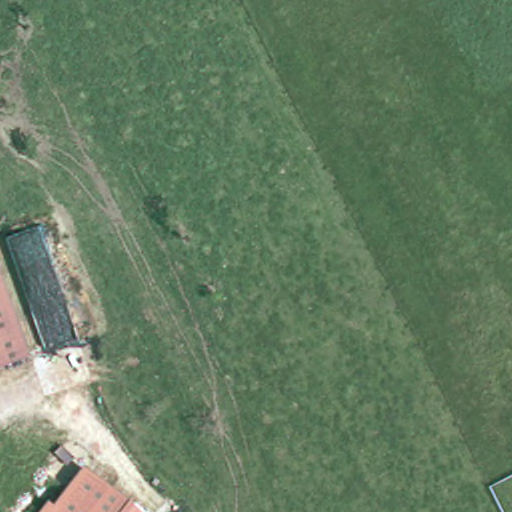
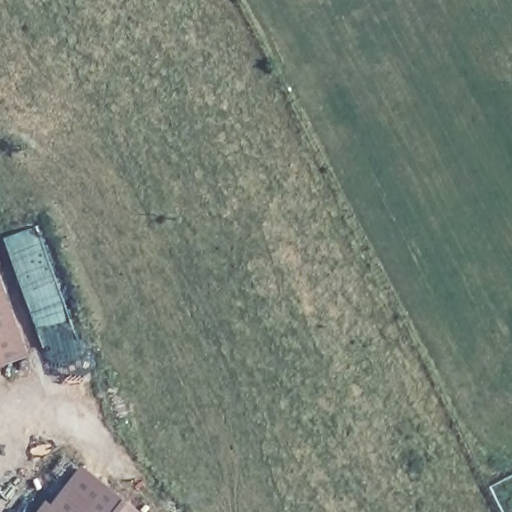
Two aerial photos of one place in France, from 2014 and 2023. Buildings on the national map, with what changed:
unchanged [(34,358),(0,371),(0,268),(34,358)]
unchanged [(141,512),(35,512),(45,499),(53,506),(82,465),(141,512)]

